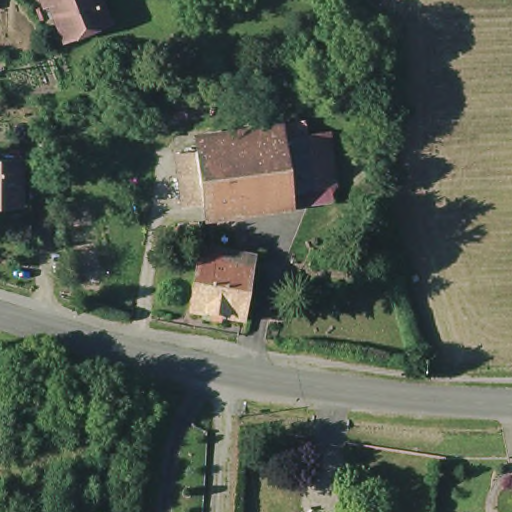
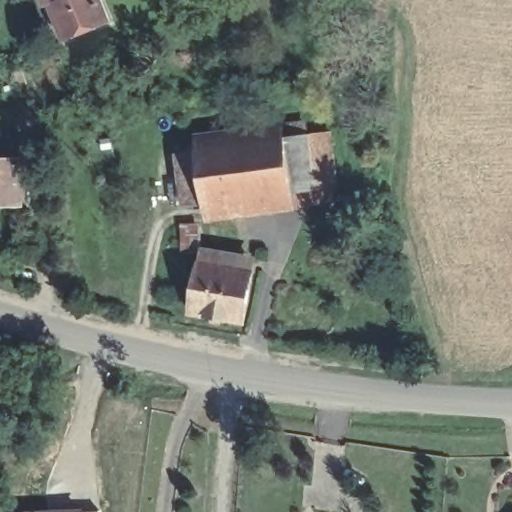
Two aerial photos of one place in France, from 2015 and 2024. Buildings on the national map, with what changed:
unchanged [(66,0),(50,7),(48,0),(66,0)]
unchanged [(99,0),(108,26),(64,44),(50,7),(66,0),(99,0)]
unchanged [(298,140),(319,137),(324,191),(304,193),(298,140)]
unchanged [(265,211),(264,198),(233,202),(192,207),(192,206),(176,208),(170,155),(186,152),(243,146),(273,142),(298,140),(304,193),(279,196),(281,209),(265,211)]
unchanged [(0,205),(0,160),(20,160),(20,205),(0,205)]
unchanged [(204,266),(206,255),(228,259),(227,270),(254,274),(248,325),(195,316),(203,266),(204,266)]
new [(83,509),(99,508),(100,512),(24,512),(24,510),(83,507),(83,509)]

